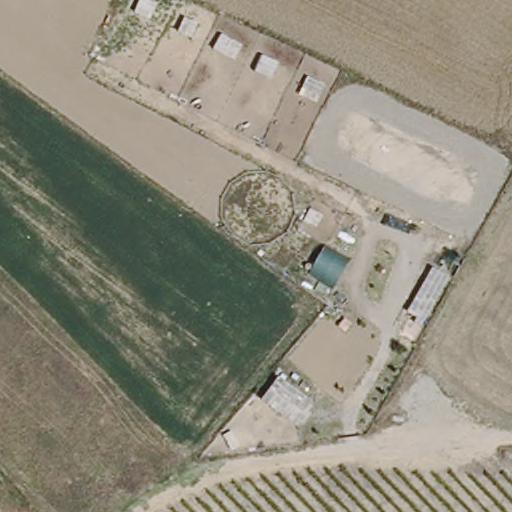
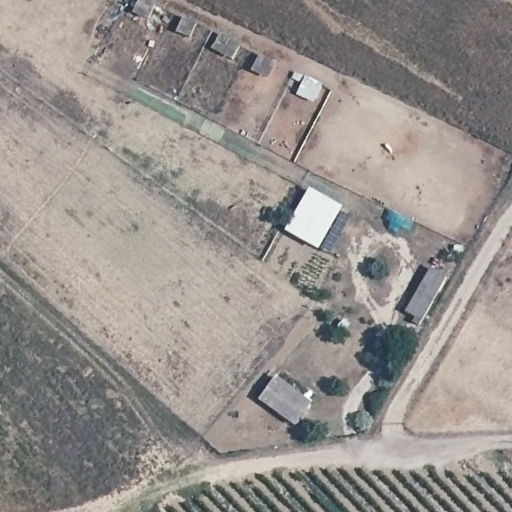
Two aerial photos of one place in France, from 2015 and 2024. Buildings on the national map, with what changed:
new [(344,209),(320,251),(287,232),(310,189),(344,209)]
unchanged [(405,312),(431,266),(450,276),(424,322),(405,312)]
unchanged [(275,377),(306,399),(308,400),(283,426),(258,407),(275,377)]

